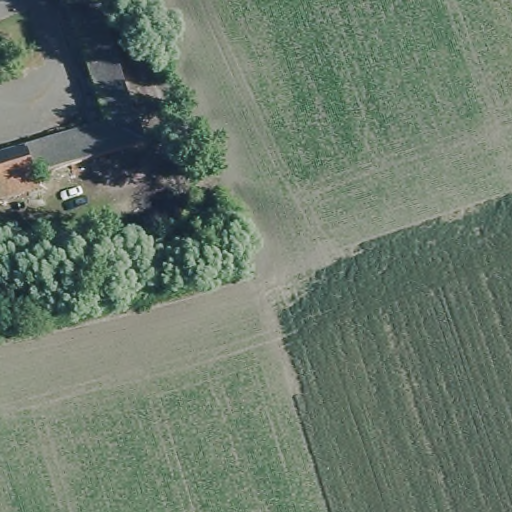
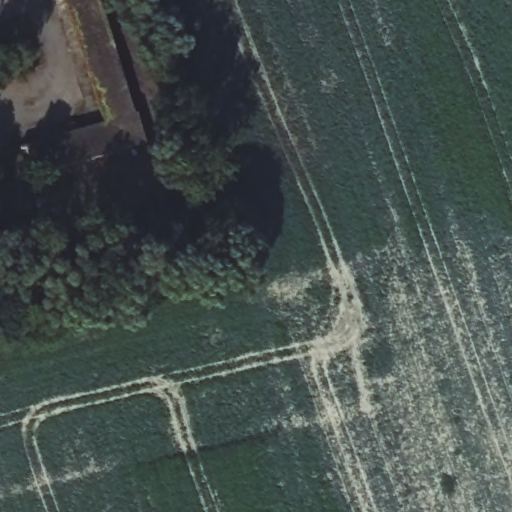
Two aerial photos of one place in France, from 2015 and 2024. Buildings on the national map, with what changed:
unchanged [(152,107),(159,132),(141,138),(142,146),(30,176),(35,191),(0,201),(0,149),(97,121),(62,0),(99,0),(133,112),(152,107)]

